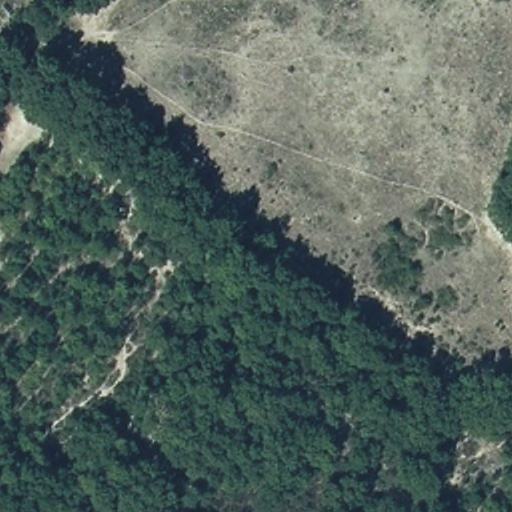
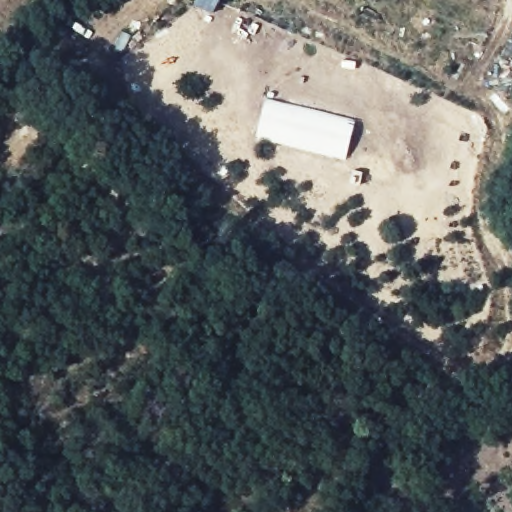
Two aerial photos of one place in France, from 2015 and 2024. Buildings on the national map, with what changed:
new [(265,97),(356,120),(345,160),(255,137),(265,97)]

